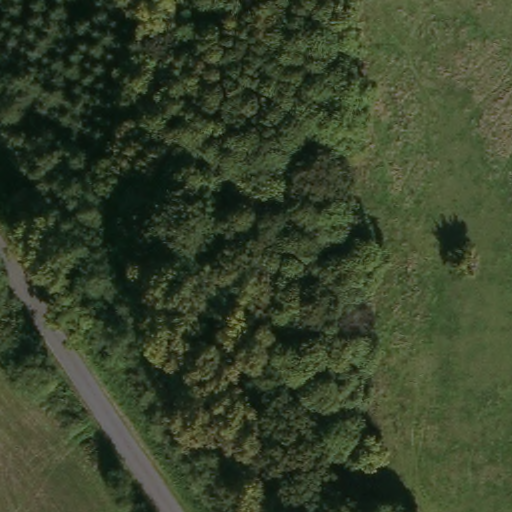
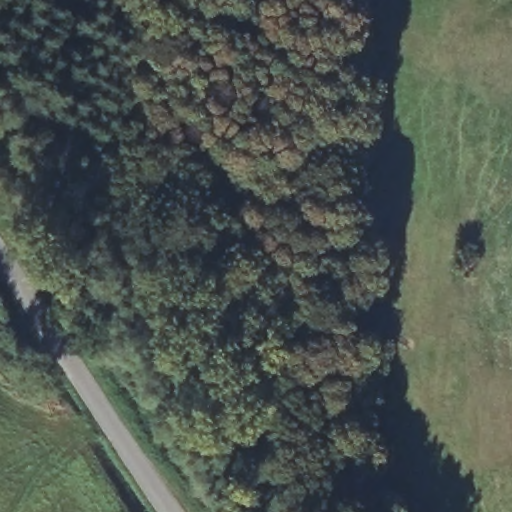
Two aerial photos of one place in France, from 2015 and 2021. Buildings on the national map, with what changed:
[]

